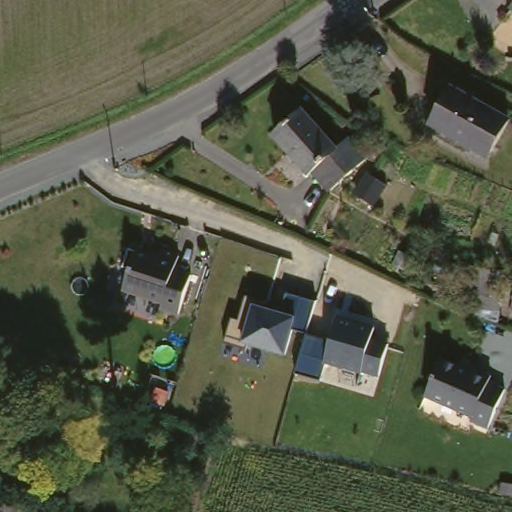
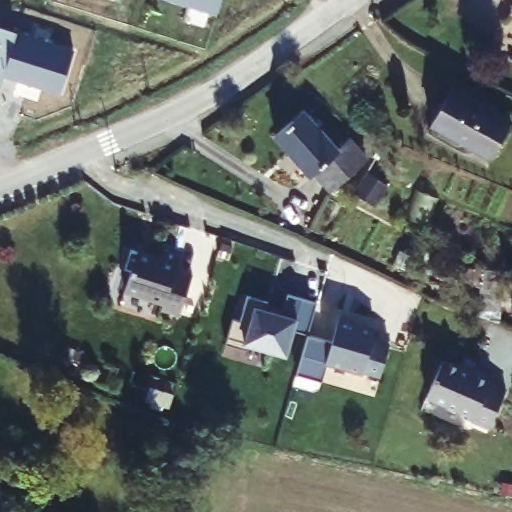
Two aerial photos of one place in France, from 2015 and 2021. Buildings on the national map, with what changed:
new [(168,0),(219,0),(214,15),(168,0)]
unchanged [(512,0),(512,1),(511,0),(512,0)]
new [(17,34),(17,35),(3,78),(0,86),(0,29),(17,34)]
new [(17,35),(74,54),(61,95),(3,78),(17,35)]
unchanged [(428,115),(444,84),(504,114),(485,153),(457,138),(425,122),(428,115)]
unchanged [(344,133),(361,155),(357,159),(325,183),(308,160),(301,165),(272,126),(303,102),(333,141),(344,133)]
unchanged [(357,159),(375,173),(364,188),(345,173),(357,159)]
unchanged [(183,312),(165,308),(166,302),(126,292),(130,270),(124,269),(128,249),(158,257),(160,248),(178,253),(175,267),(192,271),(183,312)]
unchanged [(501,268),(498,307),(467,304),(470,263),(501,268)]
unchanged [(250,344),(248,350),(227,342),(233,319),(240,322),(248,295),(258,299),(255,307),(283,313),(288,293),(316,301),(309,334),(330,339),(320,379),(295,372),(306,333),(293,329),(287,354),(250,344)]
unchanged [(369,369),(369,371),(331,362),(342,313),(380,322),(377,334),(394,338),(386,372),(369,369)]
unchanged [(446,357),(473,368),(475,364),(492,371),(489,378),(504,384),(488,423),(472,416),(473,412),(430,394),(446,357)]

